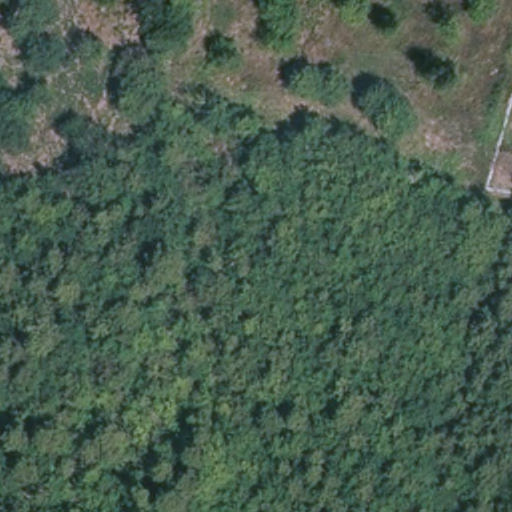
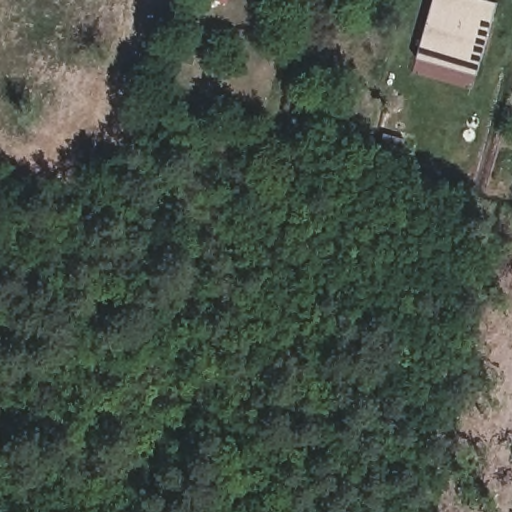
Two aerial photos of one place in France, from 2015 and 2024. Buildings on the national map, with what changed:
new [(420,57),(435,0),(469,0),(498,0),(501,0),(481,74),(478,73),(422,58),(420,57)]
new [(400,97),(420,102),(408,144),(388,139),(400,97)]

